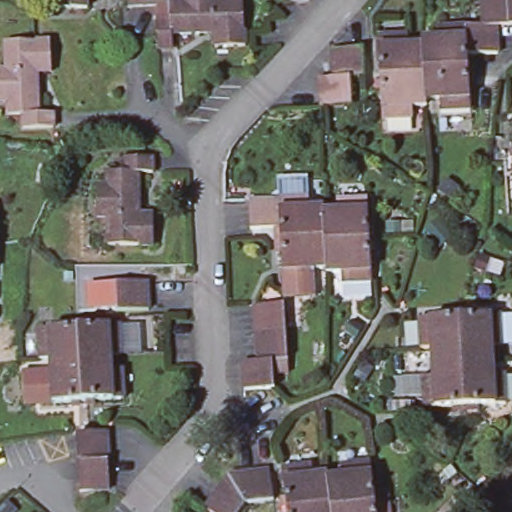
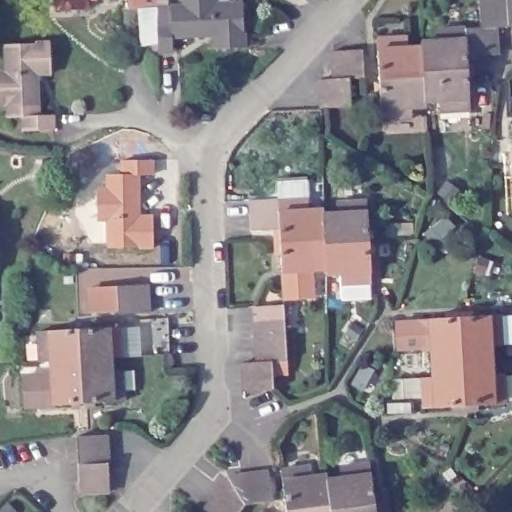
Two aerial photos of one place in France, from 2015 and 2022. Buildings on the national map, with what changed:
unchanged [(80,7),(50,9),(50,0),(80,0),(80,7)]
unchanged [(122,0),(151,0),(151,4),(137,5),(122,6),(122,0)]
unchanged [(152,51),(150,21),(151,7),(164,6),(177,5),(177,0),(209,0),(209,3),(236,2),(239,47),(209,48),(208,33),(165,36),(166,50),(152,51)]
unchanged [(420,45),(421,39),(434,39),(434,28),(464,26),(480,26),(478,0),(512,0),(512,24),(507,24),(494,25),(495,39),(495,54),(473,55),(465,55),(467,77),(469,108),(438,110),(437,98),(424,99),(425,105),(410,106),(410,116),(380,117),(378,87),(377,72),(375,36),(406,35),(407,46),(420,45)]
unchanged [(22,130),(22,115),(6,116),(6,102),(0,102),(0,71),(5,71),(4,42),(49,42),(49,72),(36,72),(37,115),(51,114),(52,129),(22,130)]
unchanged [(319,91),(318,77),(332,77),(332,62),(331,50),(361,47),(362,61),(362,76),(347,77),(348,90),(349,105),(320,106),(319,91)]
unchanged [(510,207),(509,177),(508,156),(507,127),(512,126),(512,207),(510,207)]
unchanged [(100,174),(115,174),(115,159),(146,159),(146,174),(132,174),(132,216),(147,216),(147,247),(102,247),(102,220),(90,220),(90,189),(100,189),(100,174)]
unchanged [(307,214),(321,213),(321,217),(335,217),(335,206),(365,205),(367,233),(367,255),(369,286),(338,287),(337,277),(324,278),(323,273),(310,273),(310,285),(280,286),(279,255),(278,235),(249,234),(249,219),(247,205),(277,204),(306,203),(307,214)]
unchanged [(120,316),(119,301),(118,286),(148,285),(149,299),(150,314),(120,316)]
unchanged [(244,372),(244,361),(258,361),(257,346),(257,332),(257,317),(256,305),(286,303),(287,316),(287,331),(287,345),(288,360),(274,360),(274,372),(275,387),(245,389),(244,372)]
unchanged [(414,348),(412,317),(442,315),(464,314),(494,312),(496,342),(485,343),(485,357),(487,371),(497,371),(500,401),(461,403),(447,404),(417,406),(415,376),(426,375),(425,347),(414,348)]
unchanged [(47,377),(46,363),(36,364),(34,332),(65,331),(85,330),(116,329),(118,360),(107,360),(107,373),(117,372),(120,403),(85,405),(38,407),(20,408),(19,378),(36,377),(47,377)]
unchanged [(102,432),(104,489),(75,491),(72,435),(102,432)]
unchanged [(313,475),(327,473),(327,477),(342,476),(340,466),(370,462),(375,491),(377,512),(288,512),(285,497),(282,468),(312,464),(313,475)]
unchanged [(257,471),(272,469),(276,498),(262,501),(245,502),(238,512),(212,512),(205,507),(215,494),(230,476),(257,471)]

